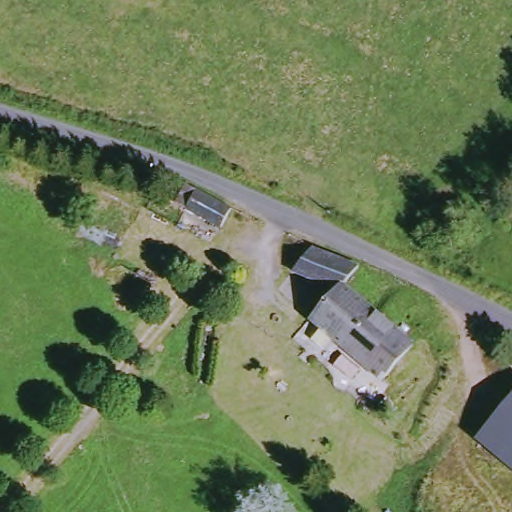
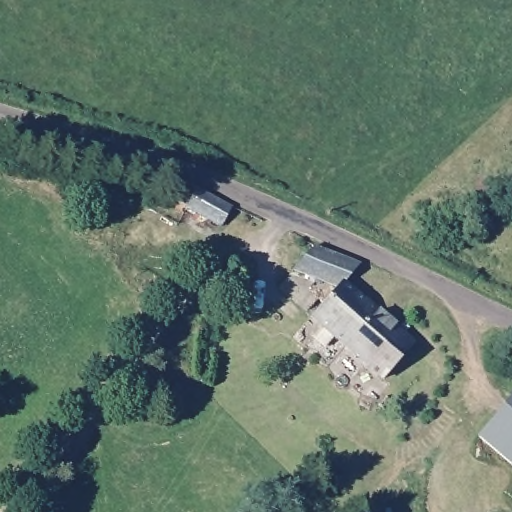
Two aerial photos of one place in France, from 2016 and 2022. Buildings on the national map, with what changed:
unchanged [(198,188),(231,209),(221,226),(173,202),(184,184),(198,188)]
unchanged [(354,268),(342,286),(407,345),(376,379),(331,339),(321,347),(311,339),(319,329),(306,317),(331,293),(284,272),(308,246),(351,266),(354,268)]
unchanged [(512,406),(512,462),(484,437),(512,406)]

